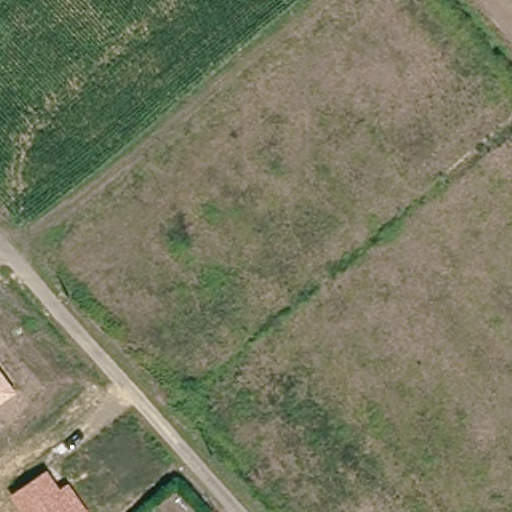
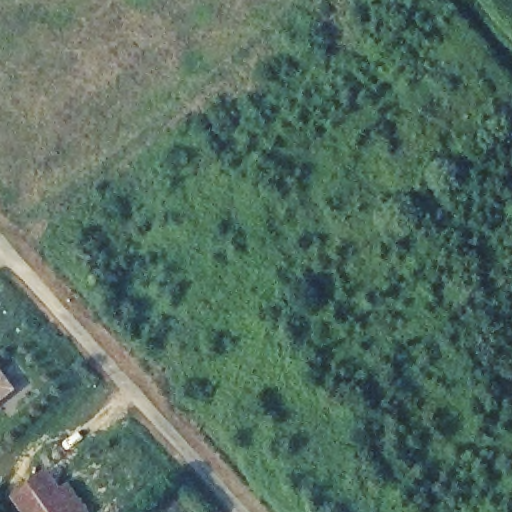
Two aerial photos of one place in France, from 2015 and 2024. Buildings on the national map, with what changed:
unchanged [(0,407),(0,368),(20,393),(0,407)]
unchanged [(20,512),(10,497),(46,470),(59,487),(69,482),(89,512),(20,512)]

